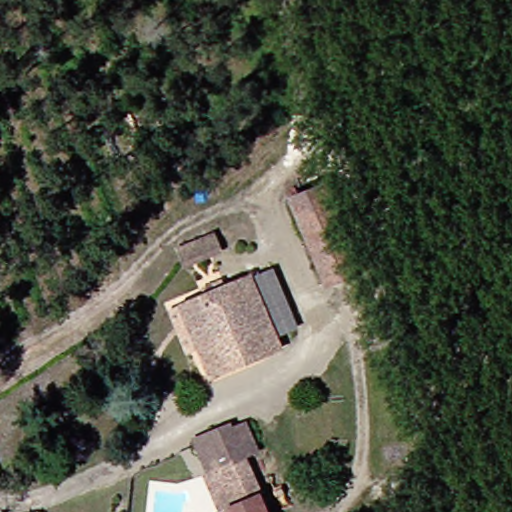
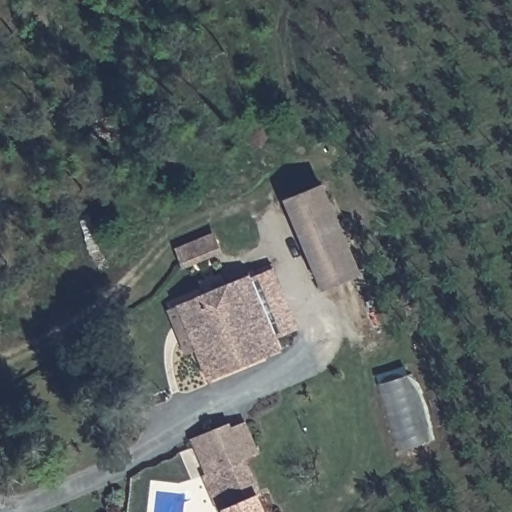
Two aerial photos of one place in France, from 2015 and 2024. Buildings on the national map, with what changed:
unchanged [(315,187),(349,273),(314,286),(281,198),(315,187)]
unchanged [(217,237),(224,256),(192,267),(184,248),(217,237)]
unchanged [(264,325),(245,332),(252,356),(198,373),(174,301),(248,275),(250,282),(273,274),(290,325),(268,335),(264,325)]
new [(433,441),(399,451),(379,383),(412,373),(433,441)]
unchanged [(200,456),(192,431),(241,413),(250,440),(234,446),(258,512),(222,512),(219,503),(200,456)]

